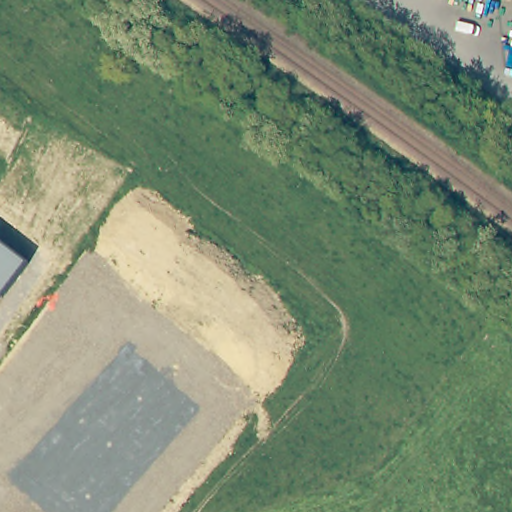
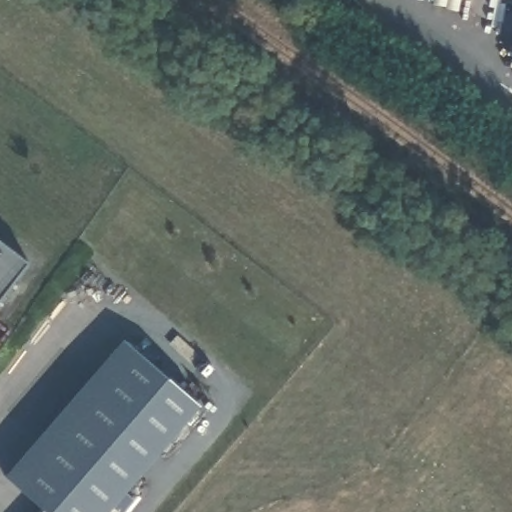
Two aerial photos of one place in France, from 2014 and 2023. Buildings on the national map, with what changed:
unchanged [(28,263),(0,301),(0,242),(28,263)]
new [(201,406),(109,512),(43,512),(44,511),(5,476),(124,340),(201,406)]

